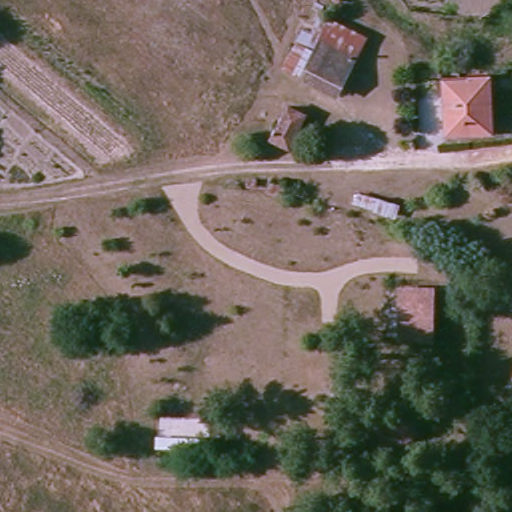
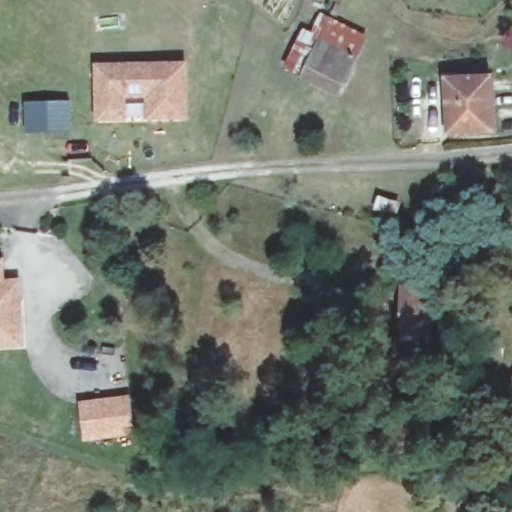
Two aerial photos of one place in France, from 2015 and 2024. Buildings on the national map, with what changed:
unchanged [(309,26),(346,36),(334,79),(298,67),(309,26)]
new [(187,60),(188,118),(146,119),(145,96),(126,96),(126,119),(94,120),(92,62),(187,60)]
unchanged [(489,78),(494,125),(448,128),(443,83),(489,78)]
demolished [(290,150),(267,139),(285,99),(308,111),(290,150)]
new [(25,102),(68,100),(69,130),(27,131),(25,102)]
new [(0,278),(16,277),(18,295),(21,341),(0,343),(0,272),(0,278)]
unchanged [(438,286),(434,336),(405,334),(409,283),(438,286)]
unchanged [(512,379),(512,385),(510,384),(512,379)]
new [(83,440),(78,400),(129,392),(135,433),(83,440)]
unchanged [(418,430),(392,446),(384,431),(410,416),(418,430)]
unchanged [(278,427),(329,428),(329,438),(278,437),(278,427)]

